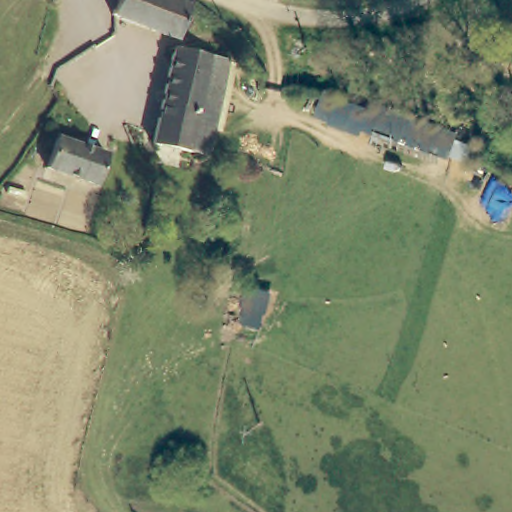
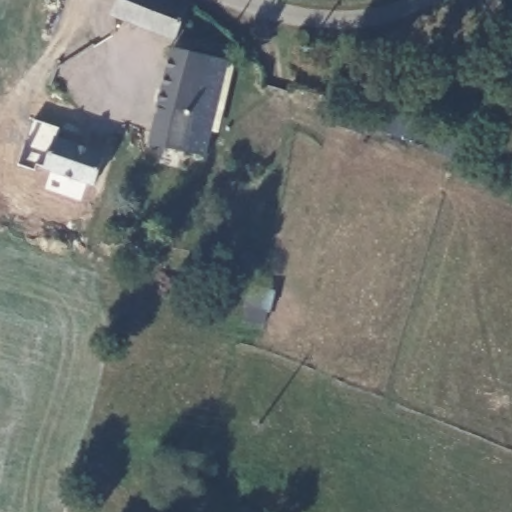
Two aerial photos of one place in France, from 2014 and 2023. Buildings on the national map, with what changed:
unchanged [(198,40),(180,35),(179,39),(111,14),(116,0),(176,0),(189,5),(185,16),(204,22),(198,40)]
unchanged [(229,58),(207,159),(157,145),(178,45),(229,58)]
unchanged [(326,94),(372,107),(374,104),(460,131),(458,139),(475,146),(470,161),(451,157),(364,130),(363,134),(331,124),(333,119),(317,115),(326,94)]
unchanged [(93,185),(45,167),(55,137),(101,153),(93,185)]
unchanged [(245,306),(242,306),(246,286),(274,291),(271,311),(267,310),(266,326),(242,321),(245,306)]

